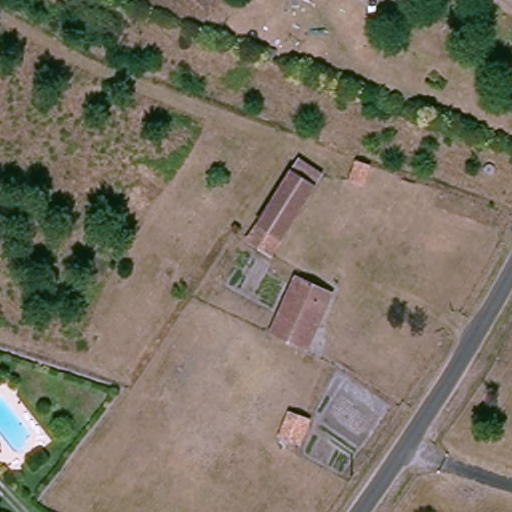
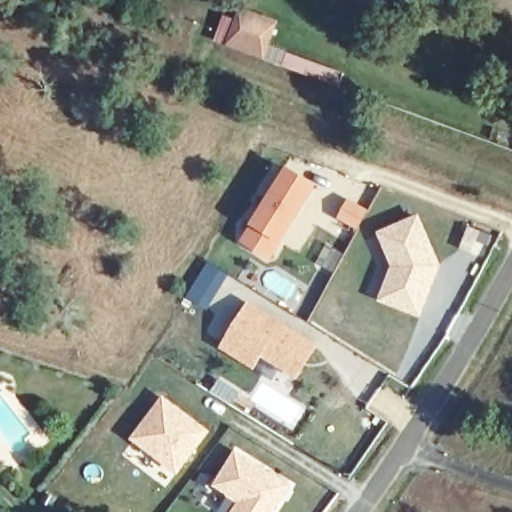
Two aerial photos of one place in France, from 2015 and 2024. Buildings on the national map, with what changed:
new [(215,41),(225,15),(235,20),(239,8),(280,22),(266,61),(227,45),(215,41)]
unchanged [(290,174),(316,191),(279,249),(252,229),(290,174)]
new [(346,197),(369,209),(357,230),(335,217),(346,197)]
new [(419,212),(443,265),(420,319),(376,302),(390,266),(375,231),(419,212)]
demolished [(328,303),(302,349),(274,331),(295,286),(328,303)]
new [(223,348),(249,306),(316,348),(298,378),(262,356),(255,368),(223,348)]
new [(178,475),(132,439),(164,396),(210,431),(178,475)]
demolished [(289,399),(318,416),(303,441),(274,422),(289,399)]
new [(236,512),(242,500),(217,484),(236,454),(287,487),(271,512),(236,512)]

